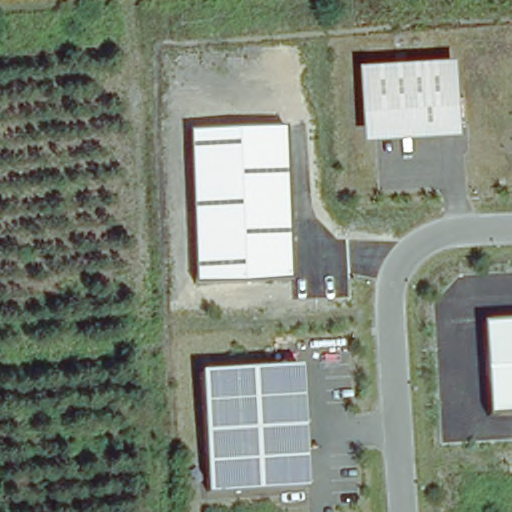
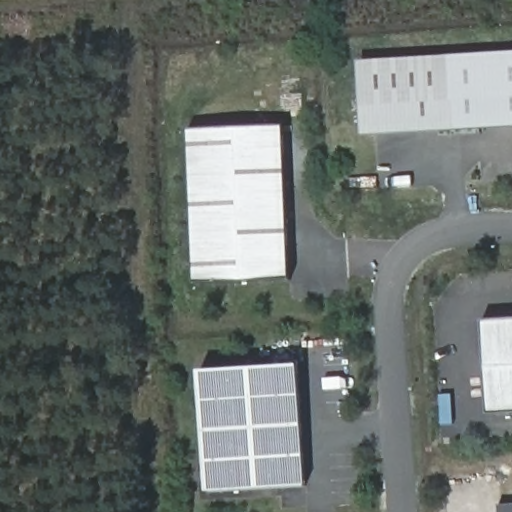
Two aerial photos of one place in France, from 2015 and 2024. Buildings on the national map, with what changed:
new [(452,58),(512,53),(512,128),(457,133),(452,58)]
unchanged [(452,58),(457,133),(363,138),(359,64),(452,58)]
unchanged [(195,284),(189,132),(285,127),(290,281),(195,284)]
unchanged [(490,417),(483,324),(512,322),(512,415),(490,417)]
unchanged [(209,495),(198,373),(297,368),(306,488),(209,495)]
new [(499,512),(499,506),(512,505),(512,512),(499,512)]

